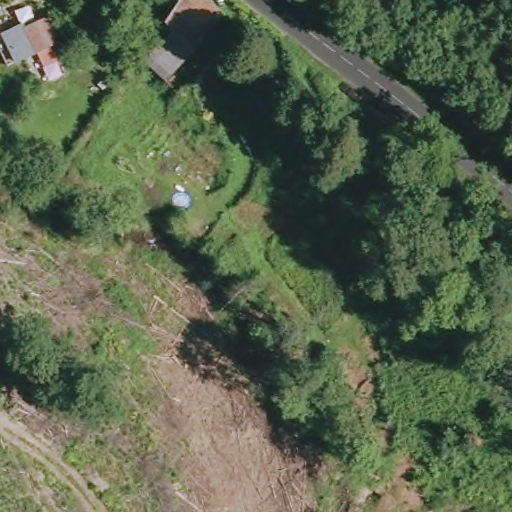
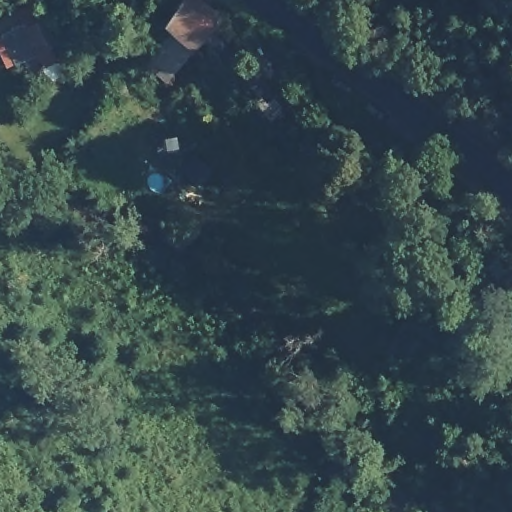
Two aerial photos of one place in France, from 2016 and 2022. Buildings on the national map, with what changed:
unchanged [(172,31),(161,22),(181,0),(199,0),(224,22),(169,80),(149,61),(172,31)]
unchanged [(67,46),(55,54),(58,61),(46,68),(28,24),(51,14),(67,46)]
unchanged [(298,125),(282,135),(268,116),(286,106),(298,125)]

